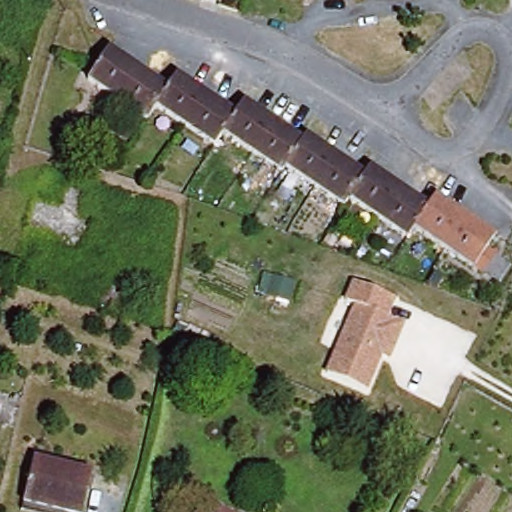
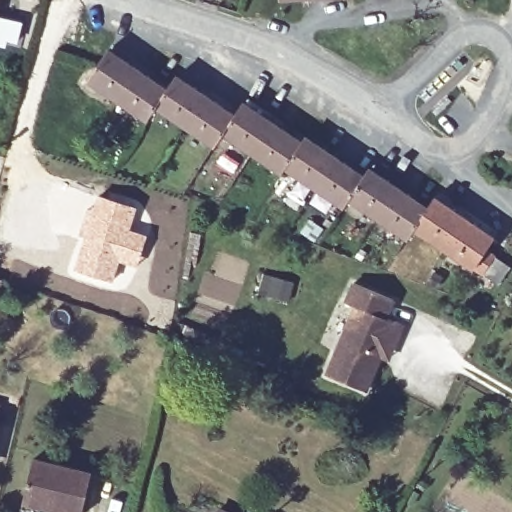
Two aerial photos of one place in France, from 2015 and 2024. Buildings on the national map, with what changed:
unchanged [(366,171),(423,210),(428,204),(430,201),(489,240),(482,250),(491,256),(478,274),(470,268),(468,272),(408,232),(403,242),(345,202),(338,211),(280,172),(276,177),(218,138),(211,150),(152,111),(144,123),(85,84),(95,71),(105,54),(163,94),(168,87),(173,80),(232,119),(237,111),(240,107),(241,107),(298,146),(301,142),(360,180),(365,173),(366,171)]
new [(82,239),(80,237),(95,194),(137,207),(130,229),(148,235),(137,267),(120,262),(113,282),(73,269),(82,239)]
new [(0,290),(0,279),(3,280),(0,290)]
unchanged [(395,301),(388,318),(407,326),(392,363),(382,359),(367,394),(324,377),(353,306),(343,302),(350,284),(395,301)]
unchanged [(21,498),(32,457),(90,472),(79,512),(73,512),(21,498)]

